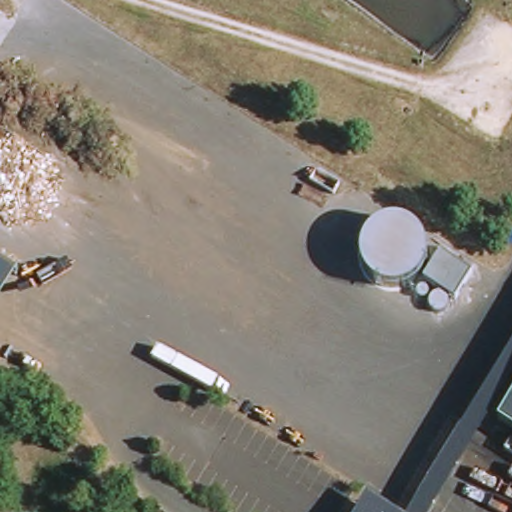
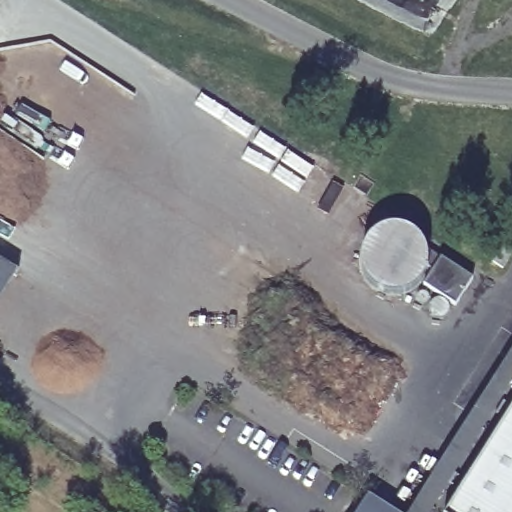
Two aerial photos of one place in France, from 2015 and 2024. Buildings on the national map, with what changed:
unchanged [(472,278),(444,322),(414,302),(441,260),(472,278)]
unchanged [(0,304),(0,262),(20,274),(0,304)]
unchanged [(425,512),(410,512),(512,354),(512,376),(425,512)]
unchanged [(500,421),(512,403),(512,429),(500,421)]
new [(512,429),(512,512),(446,512),(502,423),(512,429)]
unchanged [(375,512),(362,512),(365,506),(375,512)]

